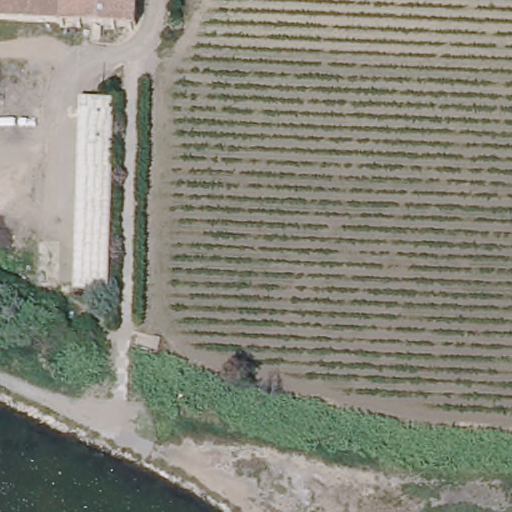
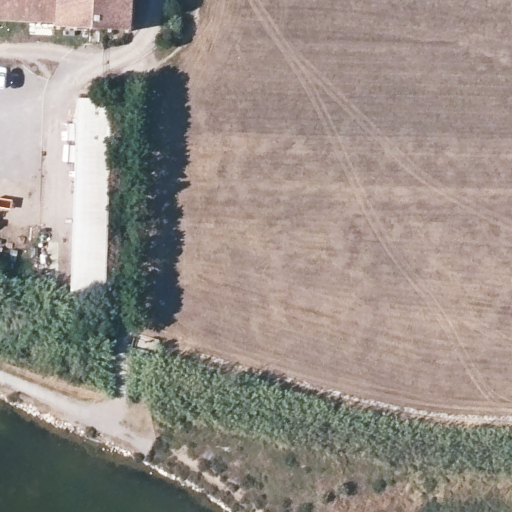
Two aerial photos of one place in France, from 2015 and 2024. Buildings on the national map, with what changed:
unchanged [(57,22),(55,15),(0,13),(0,0),(131,0),(129,29),(57,22)]
unchanged [(67,290),(72,99),(109,98),(105,290),(67,290)]

